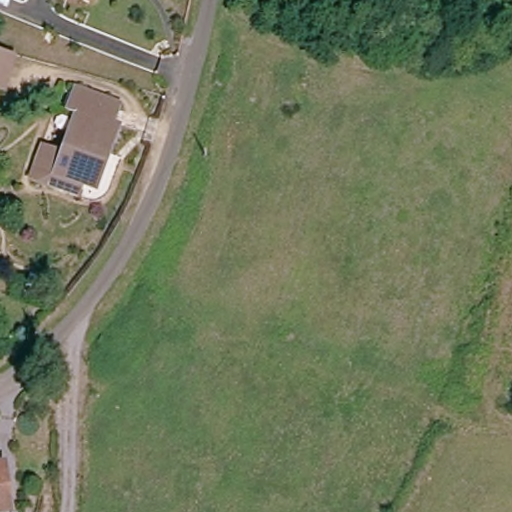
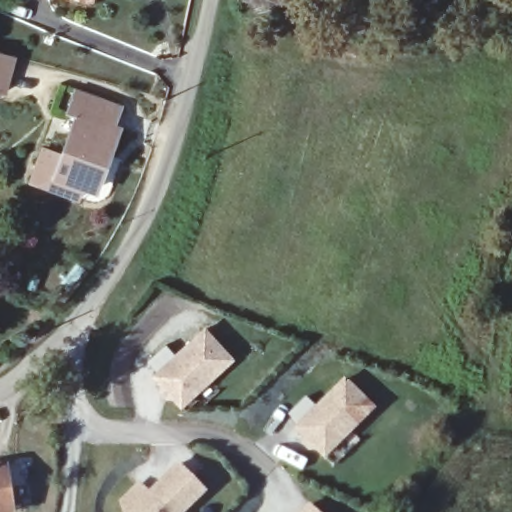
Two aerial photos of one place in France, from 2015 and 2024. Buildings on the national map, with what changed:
unchanged [(7,99),(0,97),(0,52),(15,57),(7,99)]
unchanged [(57,189),(34,181),(46,147),(70,156),(84,118),(74,115),(84,91),(125,106),(117,125),(127,129),(104,189),(85,182),(80,196),(57,189)]
new [(235,357),(182,407),(172,398),(167,399),(159,391),(160,385),(152,376),(205,326),(235,357)]
new [(376,407),(324,459),(315,451),(308,452),(301,445),(302,437),(293,428),(343,377),(376,407)]
new [(207,491),(185,512),(123,512),(120,501),(139,481),(149,492),(178,462),(207,491)]
unchanged [(14,512),(0,512),(0,469),(6,467),(14,512)]
new [(319,512),(300,512),(309,502),(319,512)]

